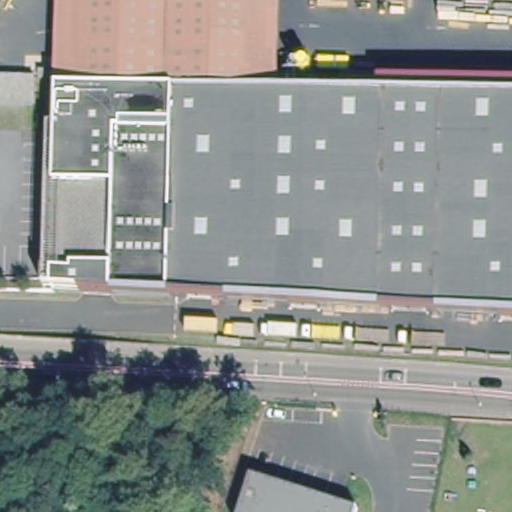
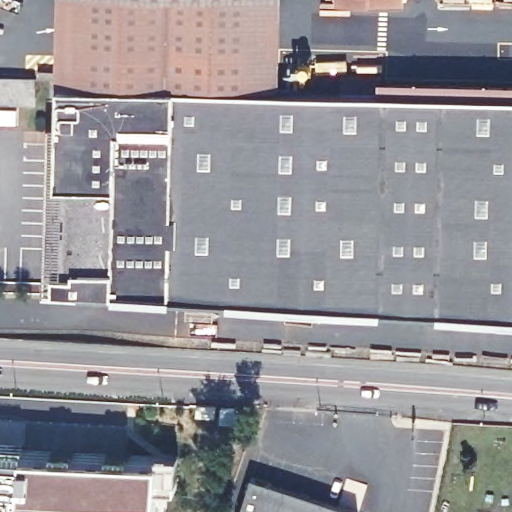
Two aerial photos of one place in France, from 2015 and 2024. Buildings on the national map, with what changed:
unchanged [(76,73),(56,73),(61,0),(81,0),(76,73)]
unchanged [(256,84),(76,73),(81,0),(261,0),(256,84)]
unchanged [(277,85),(256,84),(261,0),(282,0),(277,85)]
unchanged [(405,7),(343,2),(343,0),(406,0),(405,7)]
new [(0,74),(35,74),(35,103),(0,103),(0,74)]
unchanged [(48,281),(60,77),(512,108),(512,312),(48,281)]
new [(23,450),(112,456),(178,458),(176,484),(158,483),(157,512),(0,512),(0,441),(24,443),(23,450)]
unchanged [(242,512),(253,476),(358,512),(242,512)]

